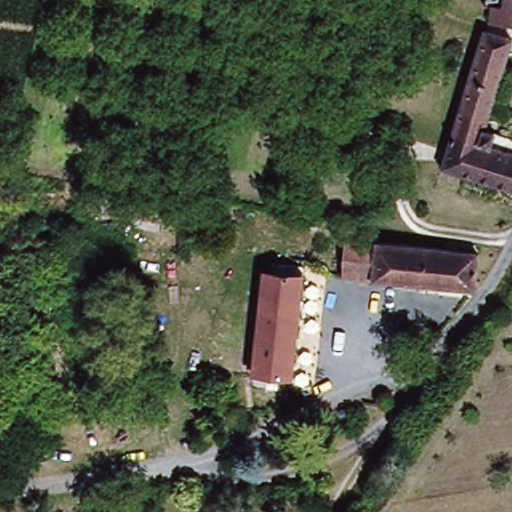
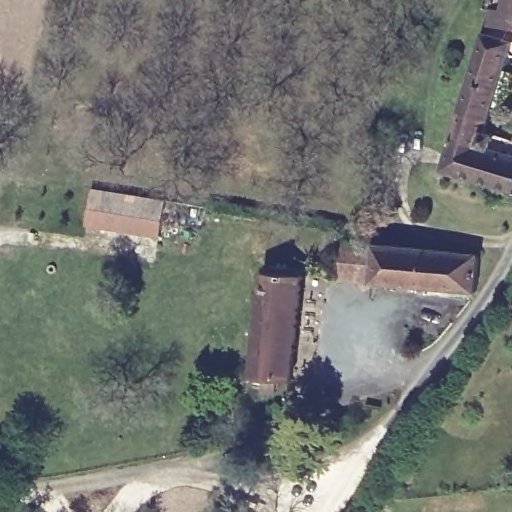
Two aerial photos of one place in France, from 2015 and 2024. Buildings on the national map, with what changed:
unchanged [(487,21),(487,14),(477,11),(479,3),(491,4),(491,0),(512,0),(512,25),(487,21)]
unchanged [(512,40),(512,62),(487,147),(512,155),(512,191),(445,172),(489,34),(512,40)]
new [(159,238),(85,226),(90,188),(165,200),(159,238)]
unchanged [(351,235),(379,239),(374,280),(346,277),(351,235)]
unchanged [(494,253),(492,268),(480,267),(477,293),(374,280),(379,239),(494,253)]
unchanged [(270,273),(311,277),(301,382),(260,377),(270,273)]

